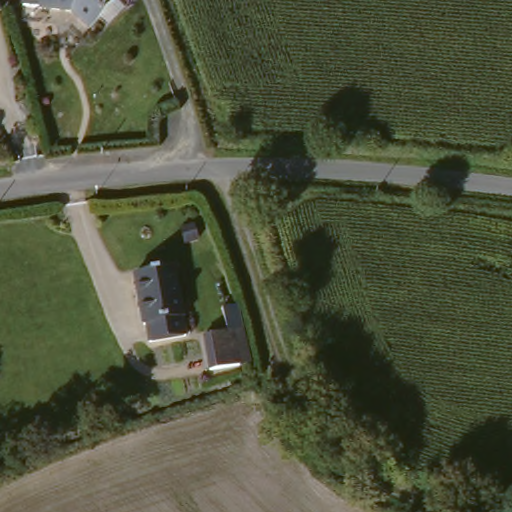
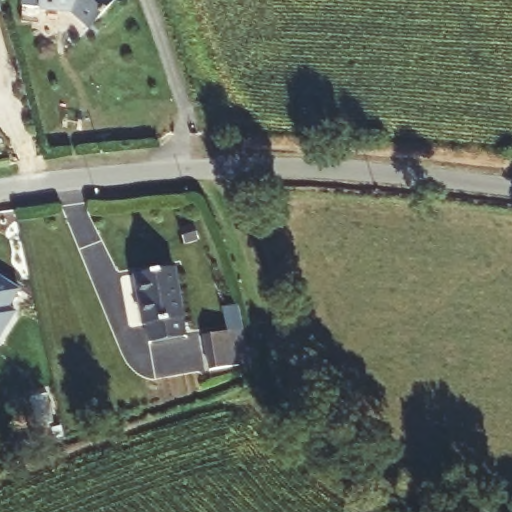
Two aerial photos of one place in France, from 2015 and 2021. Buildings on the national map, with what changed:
unchanged [(88,33),(70,17),(40,13),(41,0),(113,0),(116,3),(88,33)]
unchanged [(174,266),(186,334),(146,342),(143,317),(136,318),(129,272),(174,266)]
new [(6,303),(14,307),(0,333),(0,276),(16,284),(6,303)]
unchanged [(194,340),(224,335),(234,334),(239,370),(231,372),(200,379),(194,340)]

